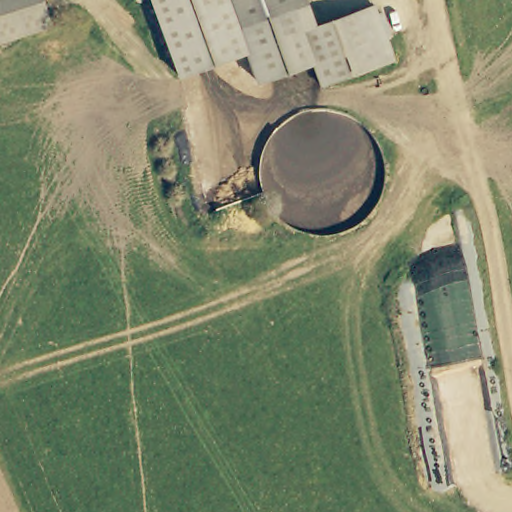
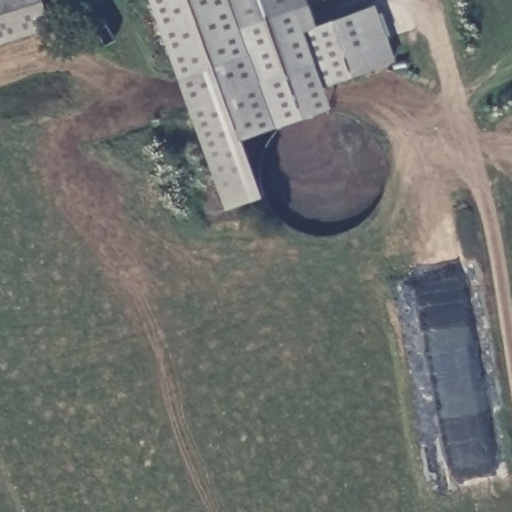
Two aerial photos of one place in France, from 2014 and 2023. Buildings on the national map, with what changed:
unchanged [(55,0),(59,13),(64,26),(0,47),(0,0),(55,0)]
unchanged [(315,65),(259,86),(249,57),(184,80),(154,0),(292,0),(305,37),(315,65)]
unchanged [(324,90),(315,65),(305,37),(377,10),(396,64),(324,90)]
new [(330,109),(241,138),(261,195),(229,207),(184,80),(249,57),(259,86),(315,65),(324,90),(330,109)]

